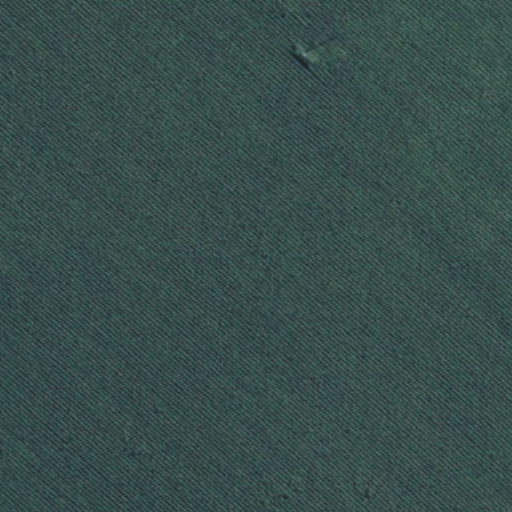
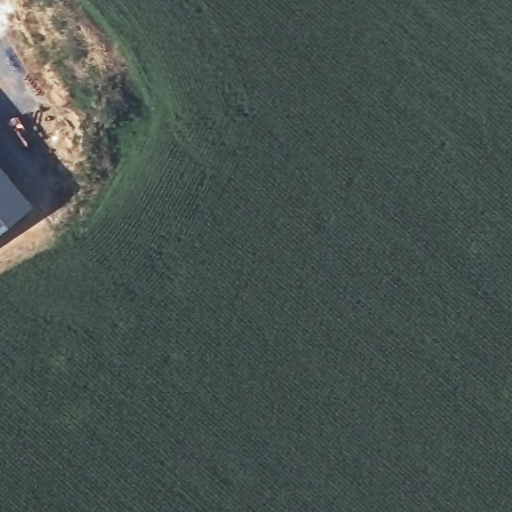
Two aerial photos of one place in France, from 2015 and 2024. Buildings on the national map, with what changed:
new [(34,200),(0,228),(0,159),(34,200)]

